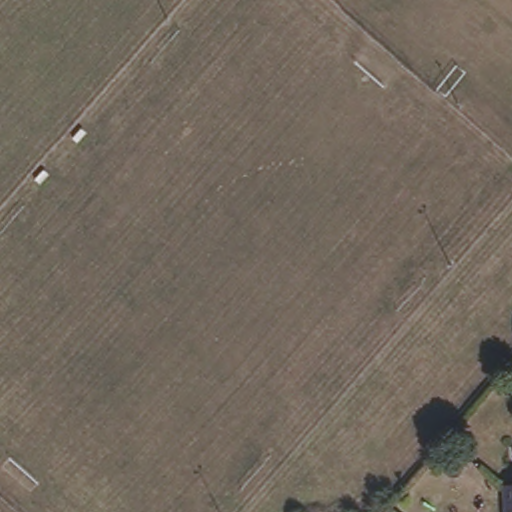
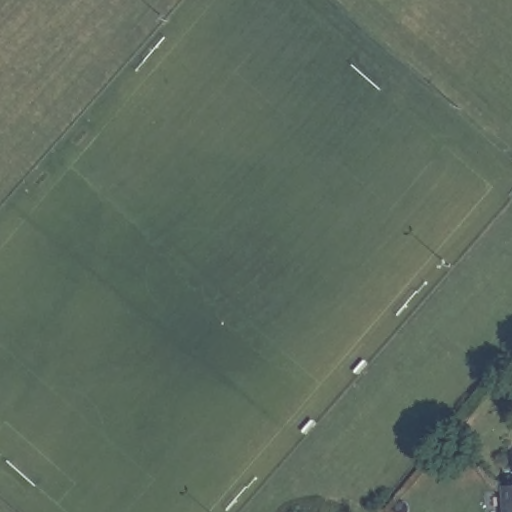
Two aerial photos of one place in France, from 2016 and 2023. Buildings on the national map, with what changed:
unchanged [(512,484),(512,512),(509,512),(507,484),(512,484)]

